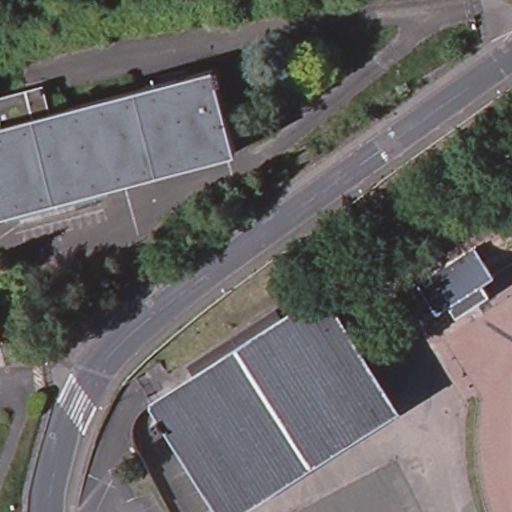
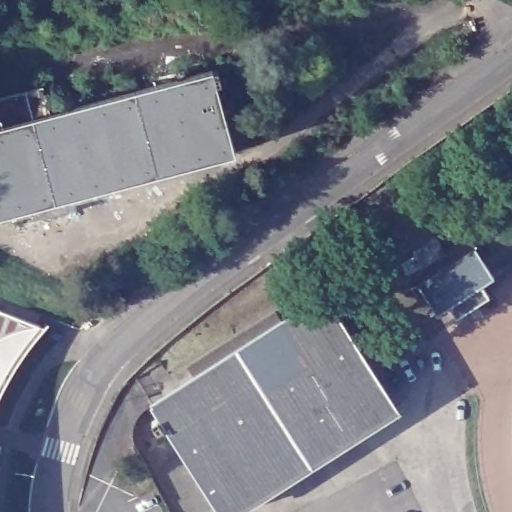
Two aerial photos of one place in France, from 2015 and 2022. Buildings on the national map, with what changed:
unchanged [(215,66),(216,69),(221,67),(224,80),(219,81),(237,151),(82,192),(0,214),(0,125),(52,111),(215,66)]
unchanged [(45,85),(52,111),(0,125),(0,97),(45,85)]
unchanged [(447,323),(440,312),(428,319),(409,290),(466,254),(486,283),(474,291),(481,302),(447,323)]
unchanged [(153,423),(162,417),(154,406),(197,378),(260,338),(284,322),(326,295),(398,408),(237,512),(223,512),(168,426),(159,431),(153,423)]
new [(41,326),(23,348),(8,370),(0,385),(0,310),(41,326)]
unchanged [(190,366),(277,311),(284,322),(260,338),(197,378),(190,366)]
demolished [(4,339),(0,339),(0,319),(4,339)]

